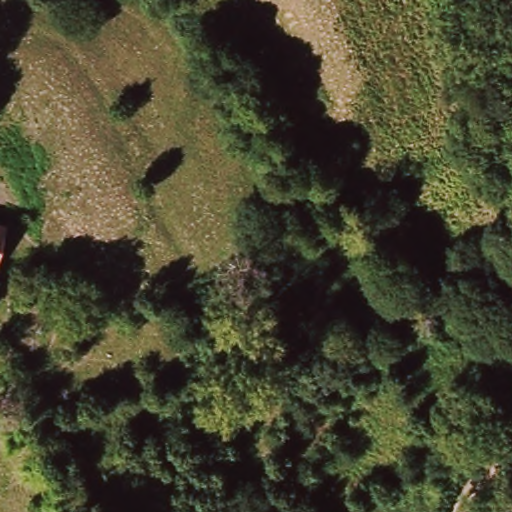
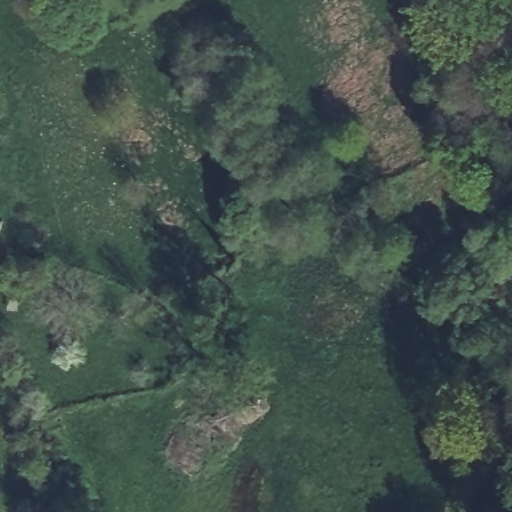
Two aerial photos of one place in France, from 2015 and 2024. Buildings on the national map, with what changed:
unchanged [(1,213),(0,221),(0,213),(1,213)]
unchanged [(0,397),(0,376),(9,391),(0,397)]

